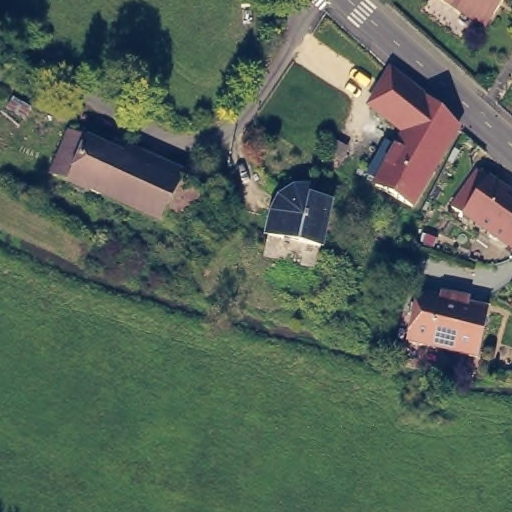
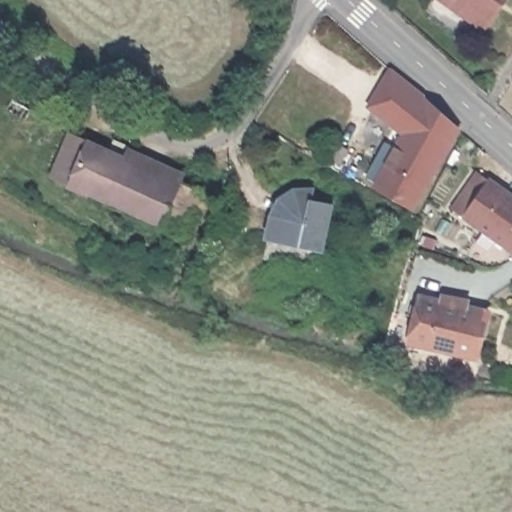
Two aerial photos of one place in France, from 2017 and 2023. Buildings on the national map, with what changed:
unchanged [(500,5),(484,27),(446,0),(504,0),(500,5)]
unchanged [(382,186),(384,181),(374,175),(392,144),(402,150),(413,131),(378,106),(398,69),(428,93),(464,126),(418,206),(382,186)]
unchanged [(186,235),(85,190),(84,193),(70,186),(71,184),(51,175),(69,134),(106,150),(111,138),(128,145),(123,157),(206,194),(186,235)]
unchanged [(468,215),(467,217),(456,209),(483,171),(496,180),(512,192),(512,245),(468,215)]
unchanged [(334,204),(330,229),(326,247),(274,238),(278,213),(280,208),(284,201),(291,194),(301,190),(309,189),(316,190),(314,201),(318,201),(334,204)]
unchanged [(490,305),(479,351),(411,335),(422,289),(490,305)]

